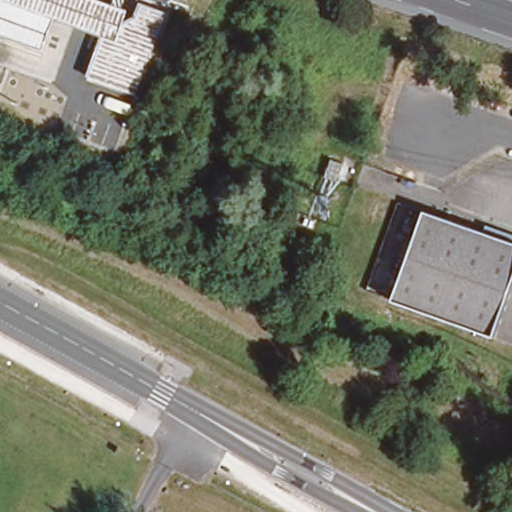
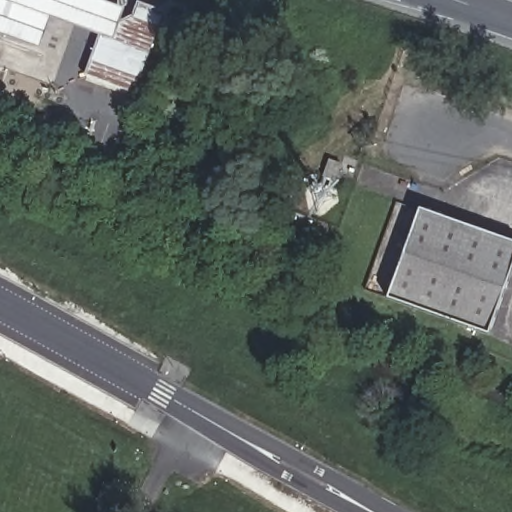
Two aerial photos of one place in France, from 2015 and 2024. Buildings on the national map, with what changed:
unchanged [(119,21),(108,17),(101,35),(52,17),(40,47),(10,38),(0,34),(0,0),(100,0),(123,9),(119,21)]
unchanged [(134,15),(139,4),(162,12),(134,90),(86,74),(101,35),(108,17),(119,21),(134,15)]
unchanged [(332,190),(315,182),(322,151),(339,160),(332,190)]
unchanged [(390,298),(423,210),(512,242),(512,270),(488,334),(390,298)]

